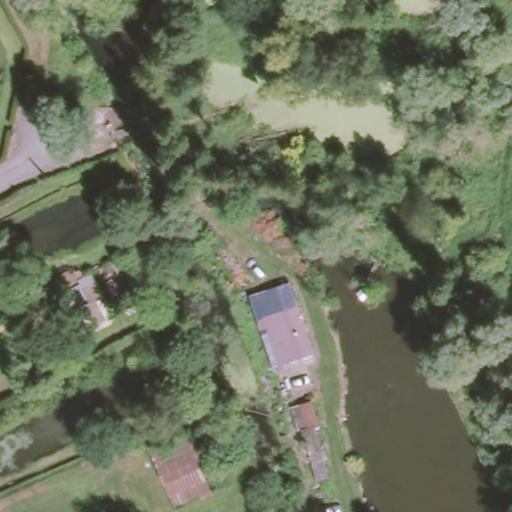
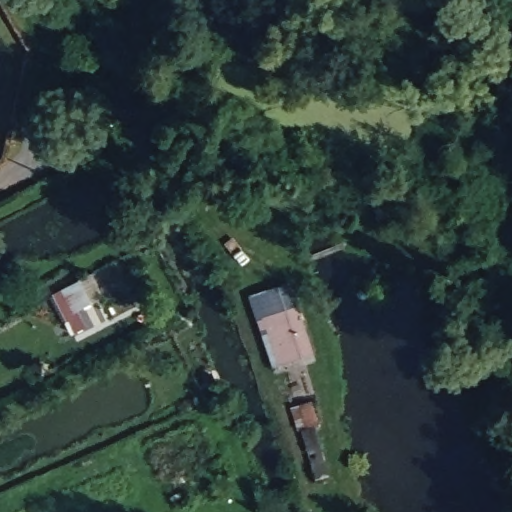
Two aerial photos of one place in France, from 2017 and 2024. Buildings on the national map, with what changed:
unchanged [(105,298),(92,306),(82,286),(96,278),(105,298)]
unchanged [(90,329),(76,336),(57,300),(70,293),(90,329)]
unchanged [(309,357),(316,396),(286,401),(279,367),(265,317),(298,310),(309,357)]
unchanged [(215,463),(200,468),(210,493),(175,505),(167,482),(164,483),(148,447),(199,428),(215,463)]

